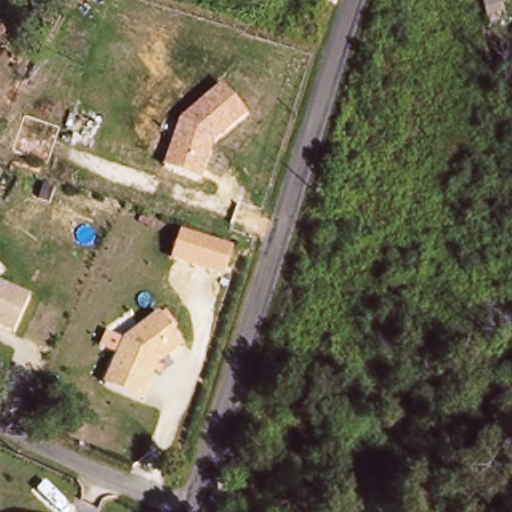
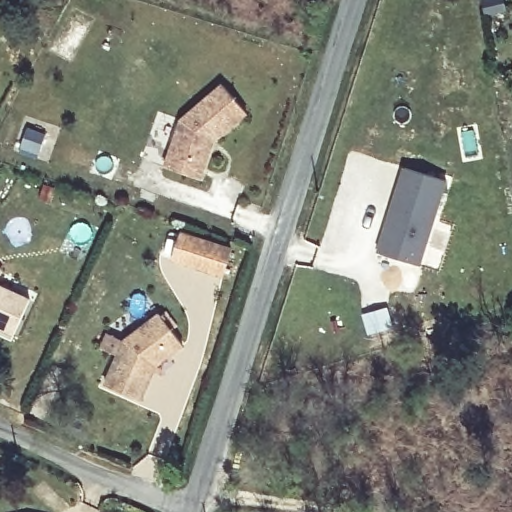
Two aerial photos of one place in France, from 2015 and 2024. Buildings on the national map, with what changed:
unchanged [(165,166),(182,120),(224,83),(249,113),(218,139),(205,179),(165,166)]
new [(409,168),(450,179),(426,265),(385,253),(409,168)]
unchanged [(236,245),(227,279),(173,262),(183,229),(236,245)]
unchanged [(31,297),(21,319),(15,333),(0,327),(0,284),(31,297)]
unchanged [(172,354),(157,365),(120,354),(126,341),(161,314),(178,337),(183,344),(172,354)]
unchanged [(157,365),(141,401),(106,387),(120,354),(157,365)]
demolished [(122,486),(116,504),(101,498),(108,481),(122,486)]

